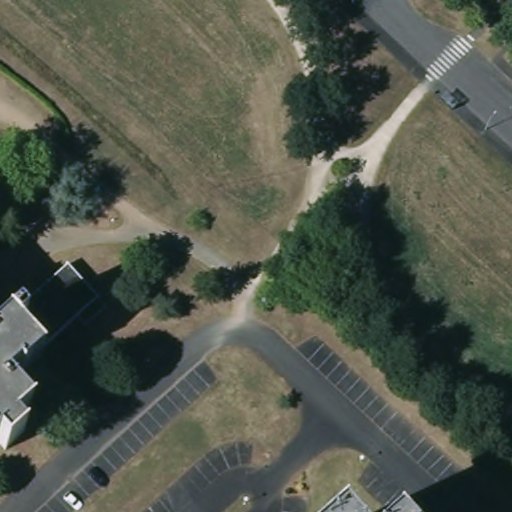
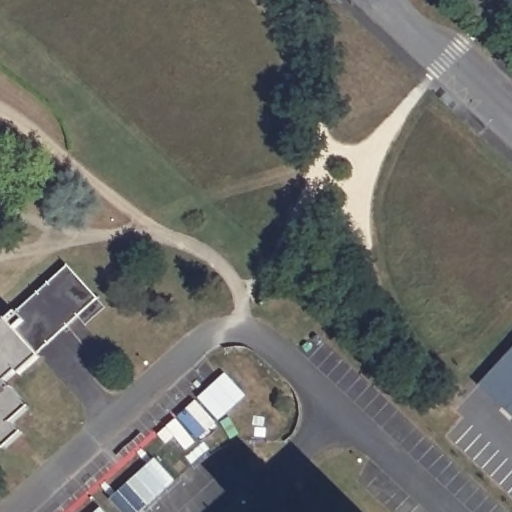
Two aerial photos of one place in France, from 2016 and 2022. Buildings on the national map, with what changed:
unchanged [(68,266),(104,307),(85,325),(78,317),(37,353),(9,318),(68,266)]
unchanged [(37,353),(39,356),(19,375),(16,372),(5,381),(29,410),(13,424),(23,435),(6,450),(0,443),(0,327),(9,318),(37,353)]
new [(478,386),(512,349),(512,417),(478,386)]

